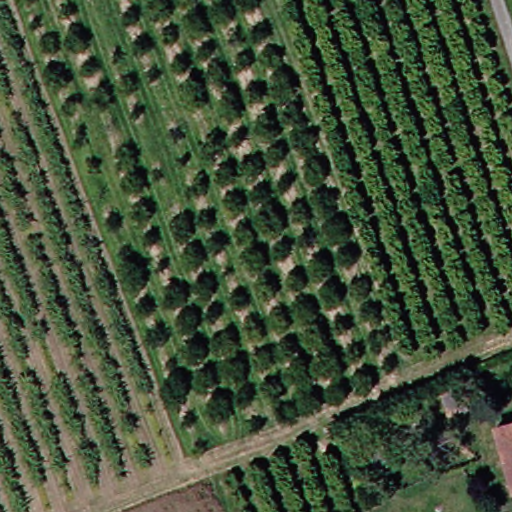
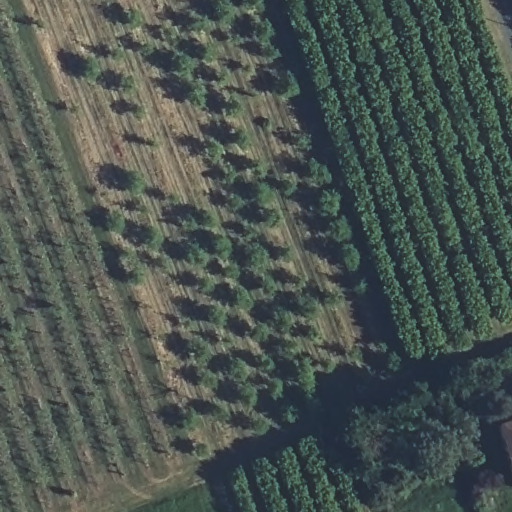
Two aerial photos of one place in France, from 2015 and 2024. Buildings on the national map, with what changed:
unchanged [(512,421),(512,458),(501,424),(512,421)]

